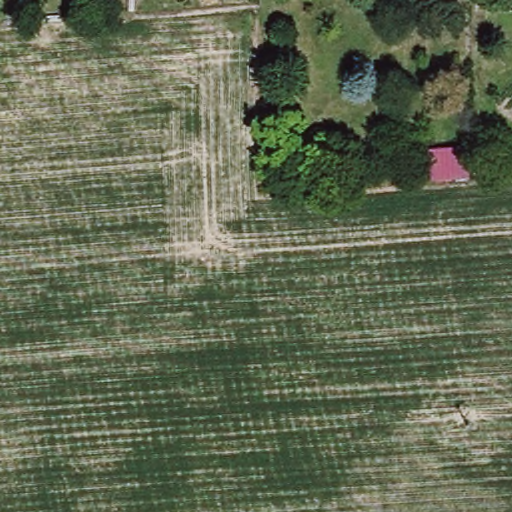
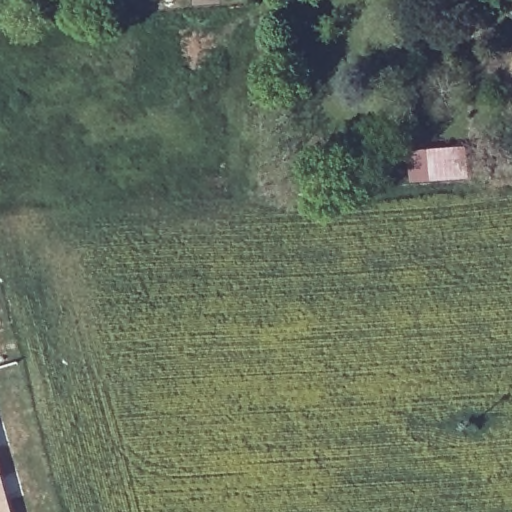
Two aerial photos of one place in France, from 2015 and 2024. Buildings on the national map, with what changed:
unchanged [(429,167),(471,165),(470,182),(430,185),(429,167)]
new [(0,481),(9,512),(0,512),(0,481)]

